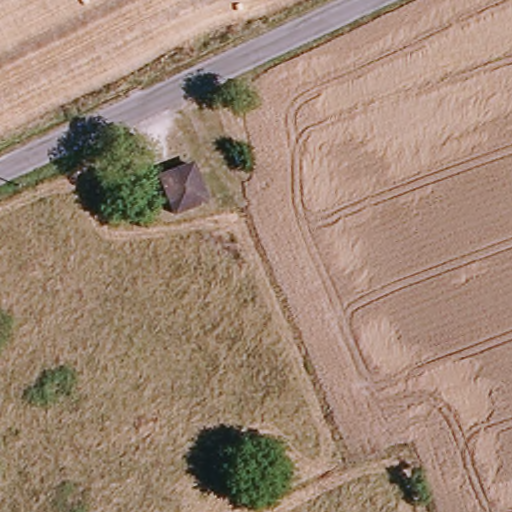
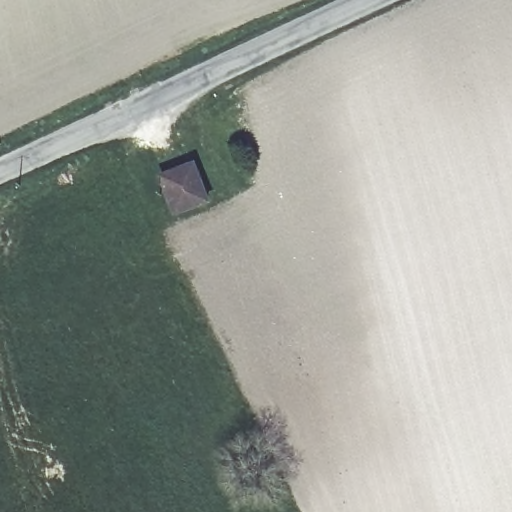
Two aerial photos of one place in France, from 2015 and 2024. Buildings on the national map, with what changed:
unchanged [(218,203),(184,218),(169,181),(202,166),(218,203)]

